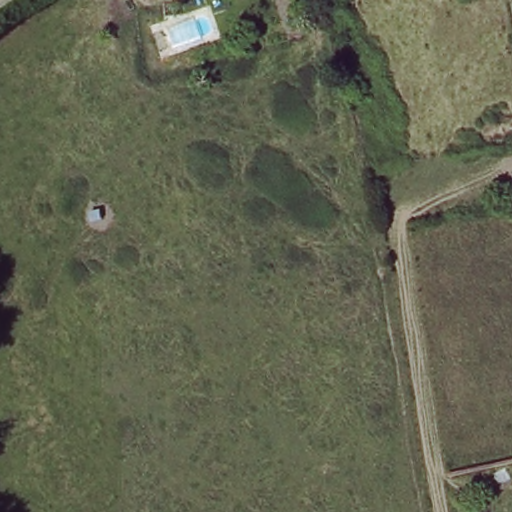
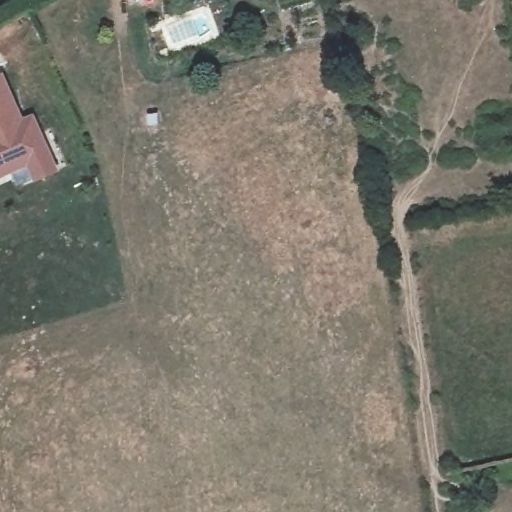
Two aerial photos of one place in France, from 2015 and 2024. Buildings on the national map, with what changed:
new [(22,119),(34,114),(59,172),(33,184),(26,169),(0,180),(0,75),(3,74),(22,119)]

